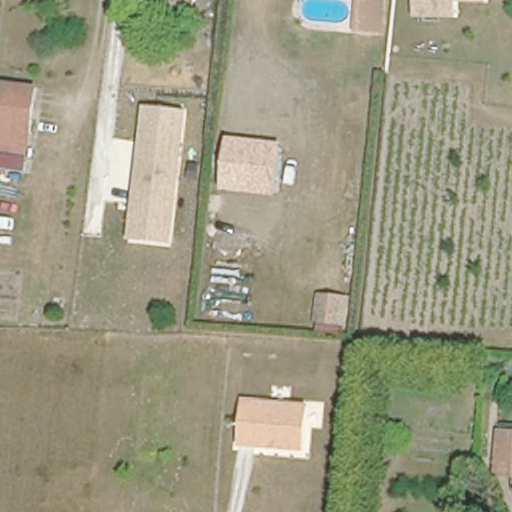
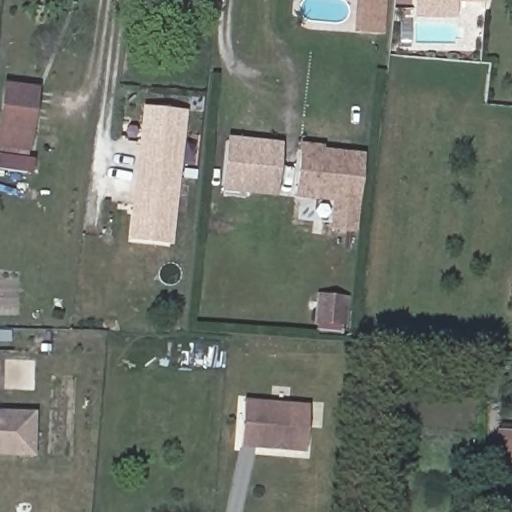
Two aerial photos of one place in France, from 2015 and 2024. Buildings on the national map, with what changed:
unchanged [(154,0),(192,0),(192,4),(154,0)]
unchanged [(385,38),(356,37),(358,0),(387,0),(385,38)]
unchanged [(419,22),(419,0),(461,0),(461,22),(419,22)]
unchanged [(0,173),(0,100),(2,83),(40,86),(30,151),(27,175),(0,173)]
unchanged [(172,244),(128,239),(141,105),(187,110),(172,244)]
unchanged [(274,197),(221,191),(227,138),(278,143),(274,197)]
new [(323,149),(363,152),(356,232),(329,230),(331,200),(294,198),(299,143),(323,145),(323,149)]
unchanged [(350,295),(347,331),(311,330),(315,291),(350,295)]
new [(9,330),(9,342),(0,342),(0,329),(9,330)]
unchanged [(242,450),(245,406),(309,411),(306,454),(242,450)]
new [(0,455),(0,410),(36,411),(35,456),(0,455)]
unchanged [(497,430),(512,431),(512,477),(491,476),(497,430)]

